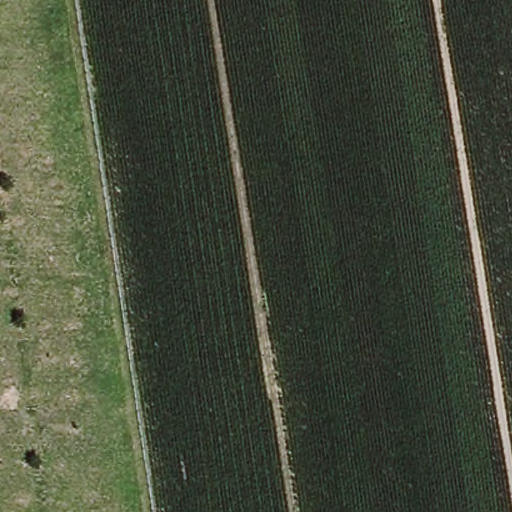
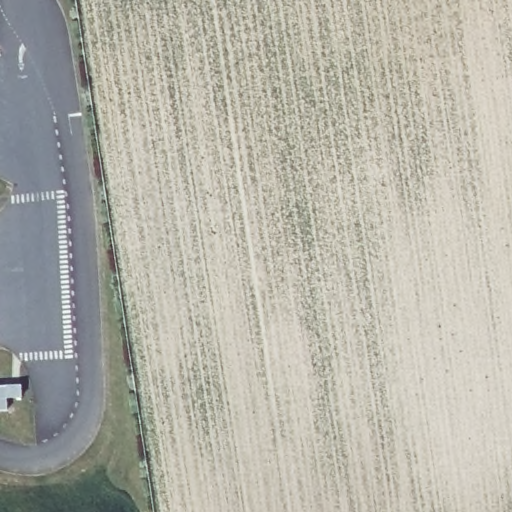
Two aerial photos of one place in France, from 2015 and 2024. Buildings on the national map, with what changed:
new [(6,397),(7,410),(0,410),(0,386),(16,385),(17,397),(6,397)]

